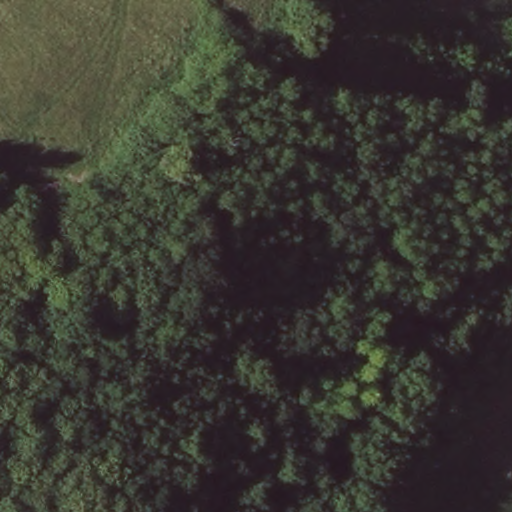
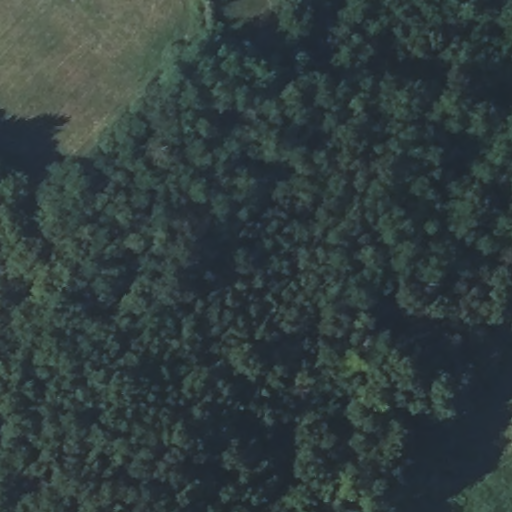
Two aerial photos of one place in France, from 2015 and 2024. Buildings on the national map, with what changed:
unchanged [(0,218),(0,188),(15,201),(0,218)]

